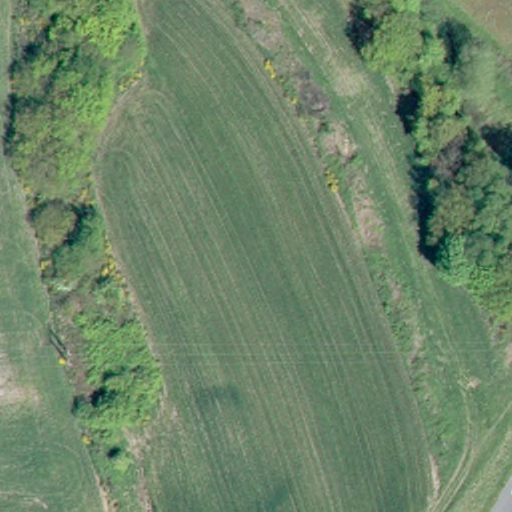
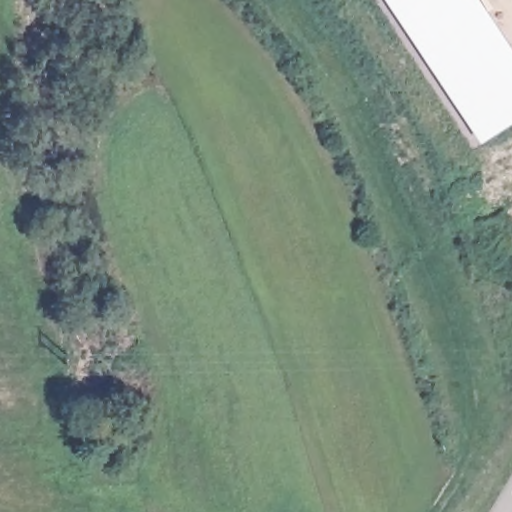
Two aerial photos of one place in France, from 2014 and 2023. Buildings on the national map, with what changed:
new [(512,54),(512,125),(483,144),(385,0),(476,0),(512,54)]

